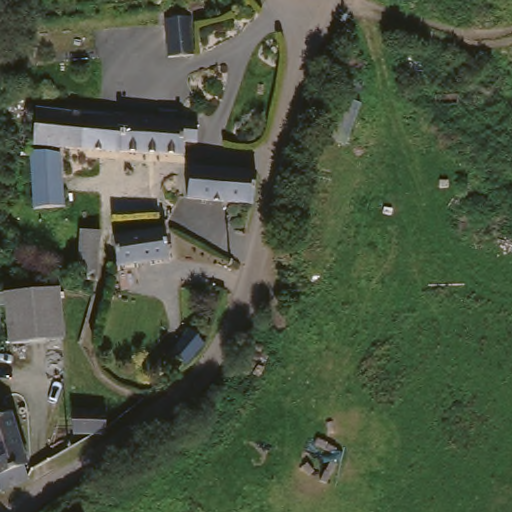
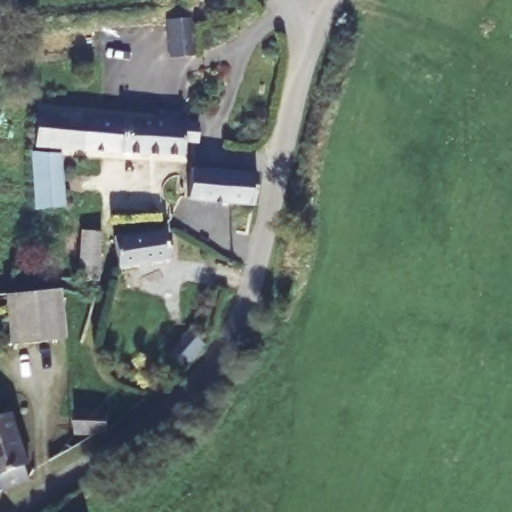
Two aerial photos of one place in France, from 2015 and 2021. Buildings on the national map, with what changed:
unchanged [(193,60),(167,62),(164,24),(183,22),(190,21),(193,60)]
unchanged [(205,155),(190,154),(189,163),(32,142),(37,105),(194,126),(192,133),(207,135),(205,155)]
unchanged [(27,180),(25,154),(55,151),(59,202),(30,205),(27,180)]
unchanged [(251,205),(186,199),(190,167),(255,173),(251,205)]
unchanged [(105,231),(157,233),(157,265),(104,264),(105,231)]
unchanged [(74,235),(94,234),(96,291),(75,291),(74,235)]
unchanged [(2,294),(57,288),(61,338),(7,344),(2,294)]
unchanged [(185,335),(202,350),(180,376),(162,361),(185,335)]
unchanged [(103,435),(82,433),(68,433),(69,410),(104,412),(104,424),(103,435)]
unchanged [(11,430),(19,458),(0,464),(0,434),(11,430)]

